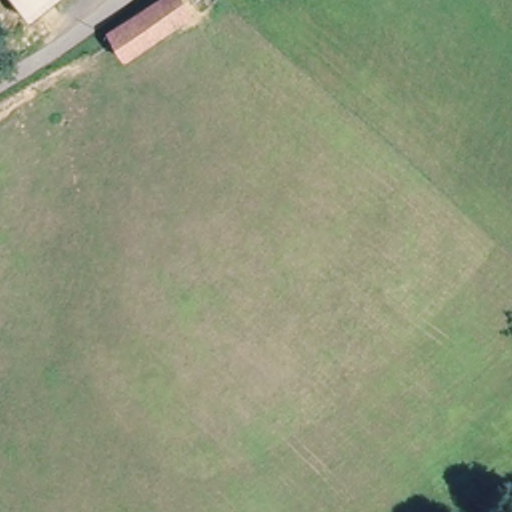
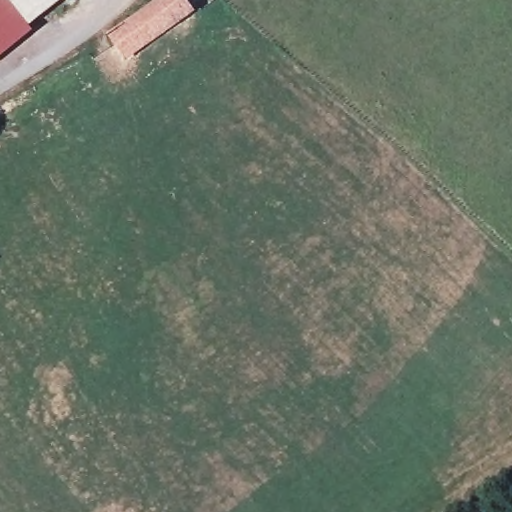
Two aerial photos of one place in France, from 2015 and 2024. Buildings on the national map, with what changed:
new [(34,35),(0,61),(0,0),(9,0),(26,26),(34,35)]
unchanged [(62,0),(26,26),(9,0),(62,0)]
unchanged [(110,35),(163,3),(168,0),(182,0),(194,18),(186,22),(124,60),(110,35)]

